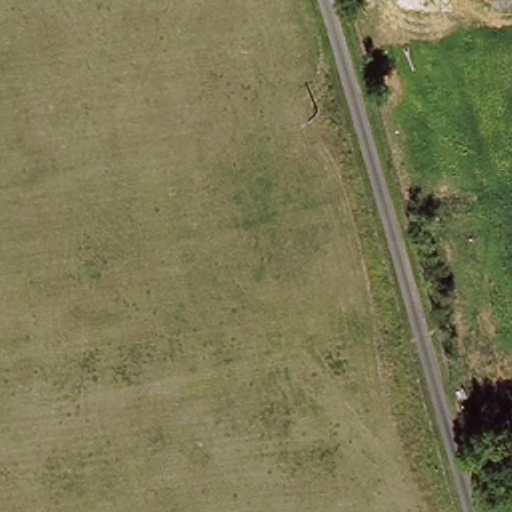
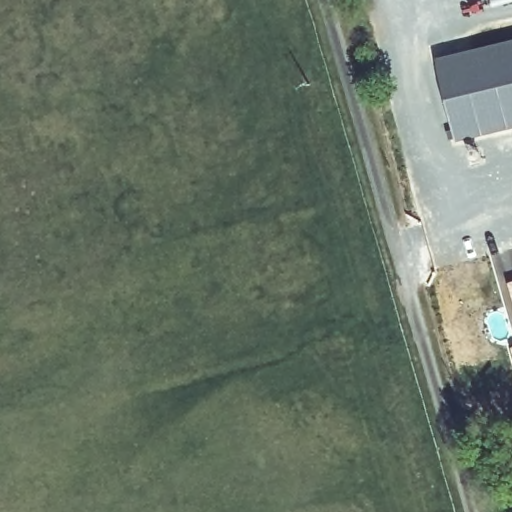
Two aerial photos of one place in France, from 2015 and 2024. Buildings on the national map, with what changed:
new [(512,129),(455,142),(435,61),(512,43),(512,129)]
new [(512,302),(506,281),(512,280),(512,302)]
new [(512,345),(512,363),(508,346),(512,345)]

